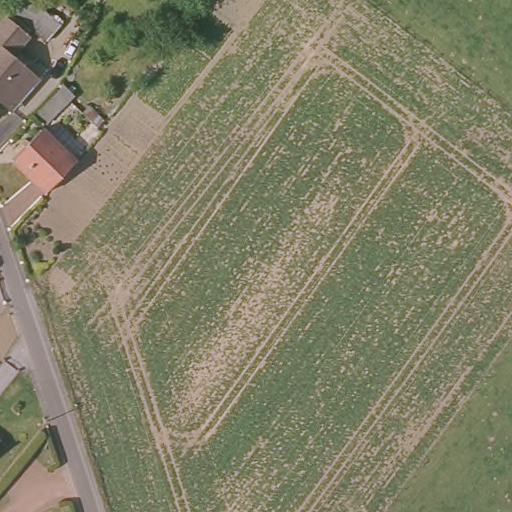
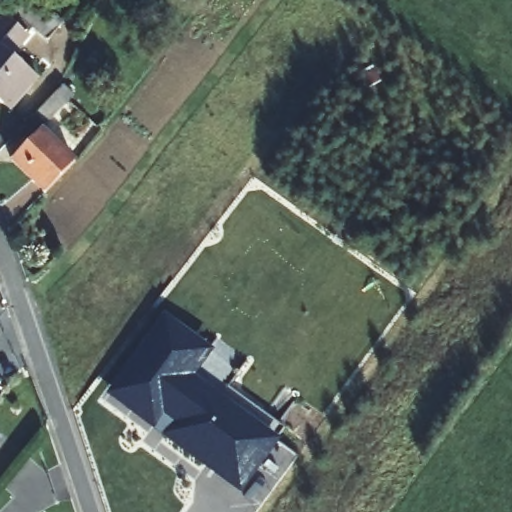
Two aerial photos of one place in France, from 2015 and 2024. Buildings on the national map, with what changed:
unchanged [(0,105),(0,22),(20,0),(31,0),(60,30),(48,45),(28,30),(10,59),(38,81),(13,116),(0,105)]
unchanged [(58,79),(68,89),(43,117),(32,107),(58,79)]
unchanged [(40,180),(9,152),(37,122),(67,147),(40,180)]
new [(105,394),(165,313),(215,350),(195,376),(282,439),(241,495),(162,436),(105,394)]
unchanged [(5,443),(0,449),(0,440),(5,443)]

